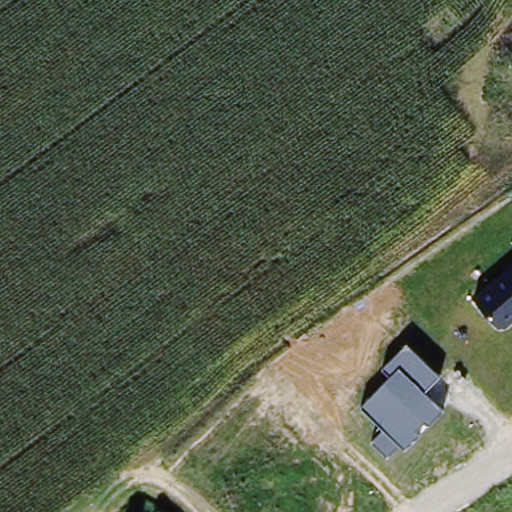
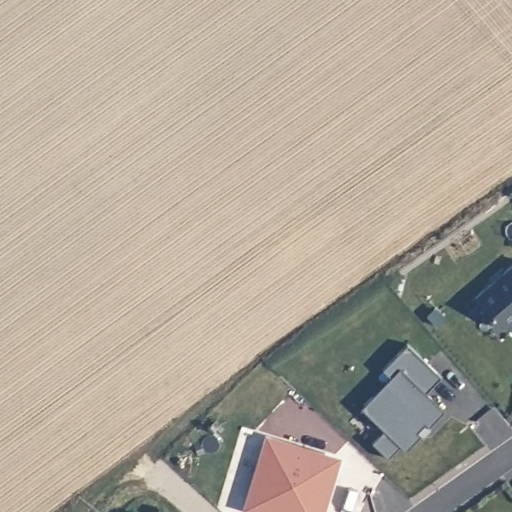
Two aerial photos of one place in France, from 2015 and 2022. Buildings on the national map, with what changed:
unchanged [(512,267),(512,324),(508,328),(497,328),(473,296),(512,267)]
unchanged [(386,430),(364,407),(390,379),(383,370),(407,346),(441,378),(428,392),(444,410),(403,450),(399,445),(387,457),(374,442),(386,430)]
new [(268,442),(334,462),(318,512),(263,512),(248,508),(268,442)]

